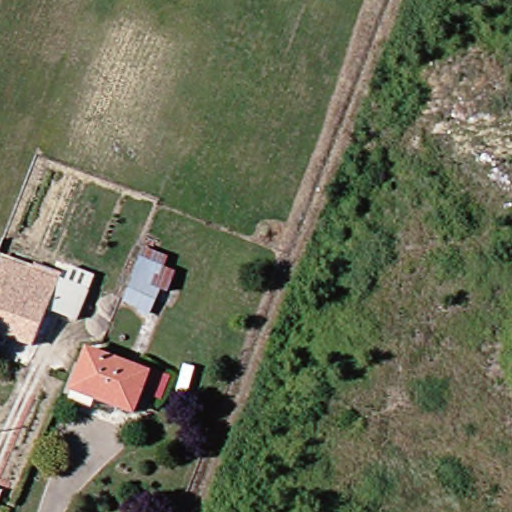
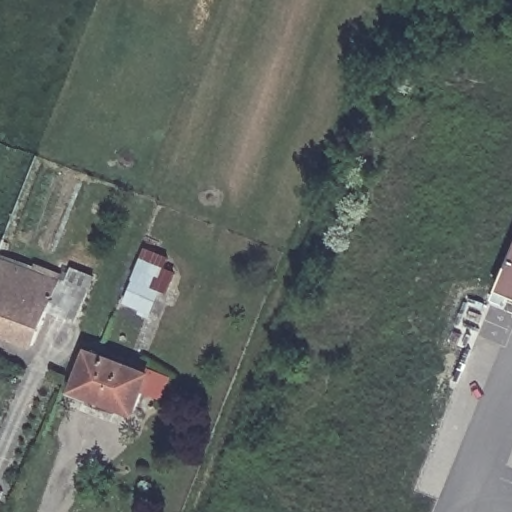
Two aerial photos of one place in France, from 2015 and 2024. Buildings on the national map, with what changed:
unchanged [(18,242),(103,275),(85,322),(56,311),(37,346),(0,332),(0,274),(18,242)]
unchanged [(128,304),(146,246),(179,255),(174,267),(185,268),(177,292),(169,289),(160,315),(128,304)]
new [(512,247),(512,303),(493,295),(512,247)]
unchanged [(132,366),(117,406),(76,388),(94,347),(132,366)]
unchanged [(157,377),(141,416),(117,406),(132,366),(157,377)]

